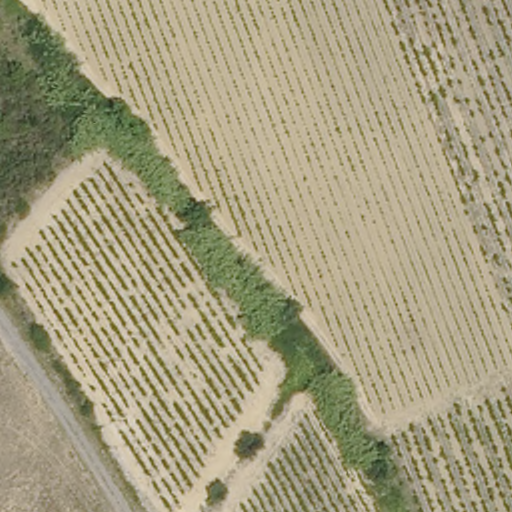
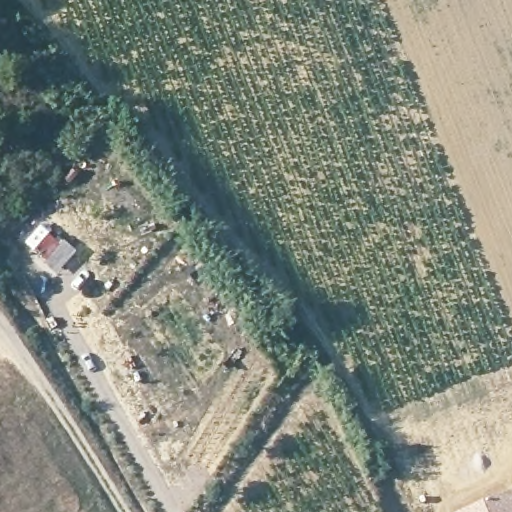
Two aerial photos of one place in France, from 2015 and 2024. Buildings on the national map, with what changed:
new [(512,490),(512,512),(459,512),(512,490)]

